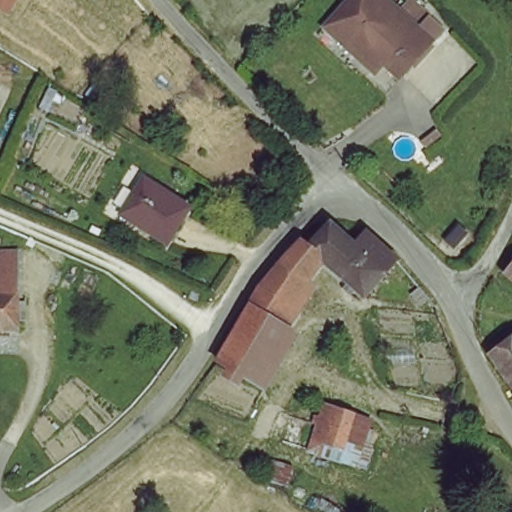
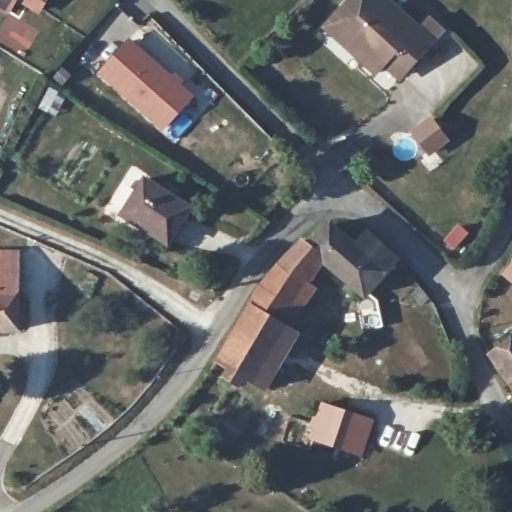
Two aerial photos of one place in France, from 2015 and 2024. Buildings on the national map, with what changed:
unchanged [(7,16),(0,12),(0,0),(17,0),(7,16)]
unchanged [(432,41),(400,83),(387,73),(377,82),(324,31),(350,0),(384,0),(432,41)]
new [(194,95),(163,130),(96,72),(128,37),(171,73),(174,71),(185,80),(182,84),(194,95)]
new [(429,121),(446,142),(430,155),(413,135),(429,121)]
unchanged [(126,224),(146,187),(189,213),(168,248),(126,224)]
unchanged [(273,293),(312,251),(318,256),(339,236),(360,255),(374,242),(399,273),(366,305),(324,270),(285,334),(292,341),(259,395),(219,374),(273,293)]
unchanged [(0,258),(21,260),(18,340),(0,340),(0,258)]
unchanged [(504,278),(512,269),(512,286),(504,278)]
unchanged [(512,335),(512,378),(492,347),(512,335)]
unchanged [(365,473),(309,456),(319,408),(369,423),(365,473)]

